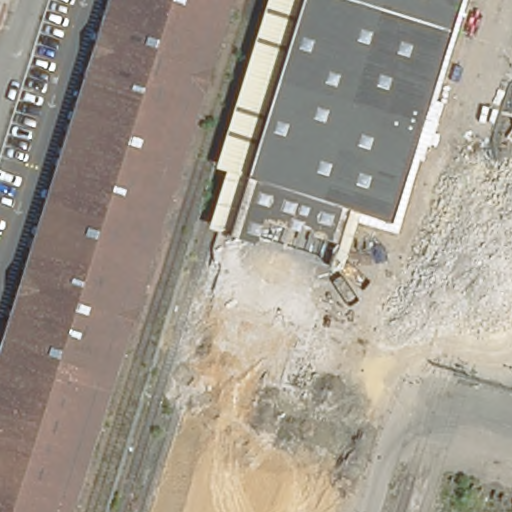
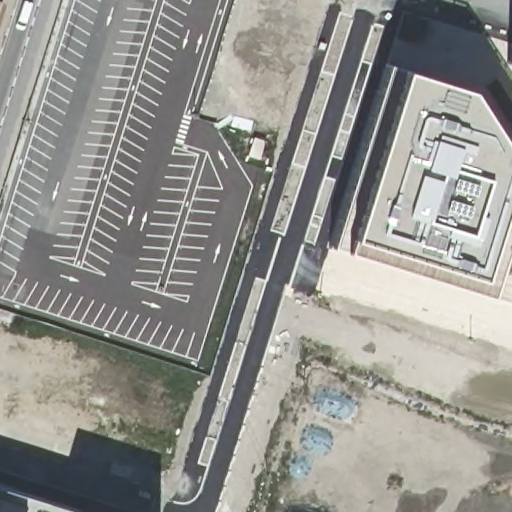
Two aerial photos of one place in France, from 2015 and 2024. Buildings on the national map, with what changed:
demolished [(110,0),(195,0),(35,512),(0,512),(0,351),(110,0)]
demolished [(333,207),(271,407),(332,427),(305,512),(148,512),(189,383),(167,376),(286,0),(446,0),(377,220),(333,207)]
new [(512,67),(508,61),(512,50),(512,67)]
new [(400,69),(465,90),(512,162),(512,303),(511,303),(483,294),(343,251),(330,245),(386,64),(400,69)]
new [(75,511),(76,509),(86,512),(0,512),(0,487),(75,511)]

